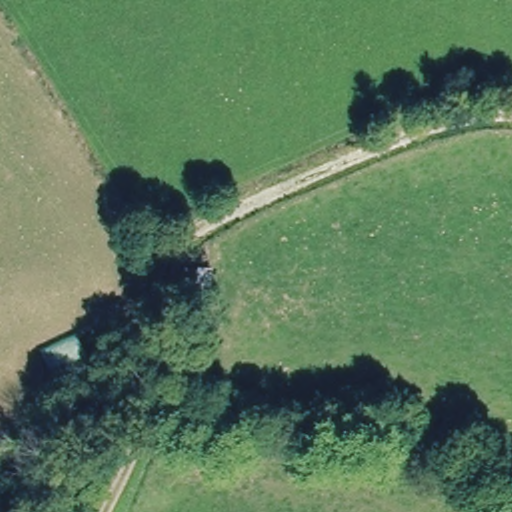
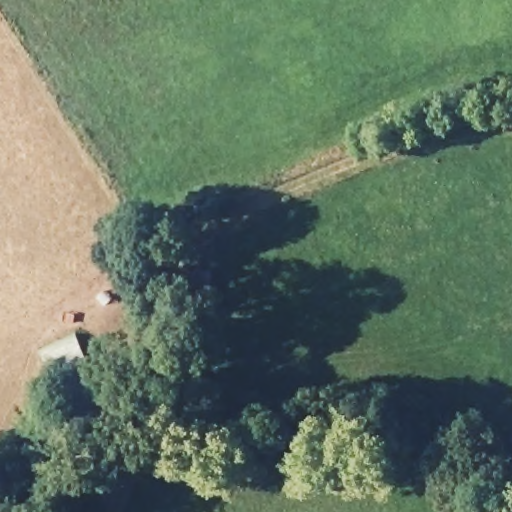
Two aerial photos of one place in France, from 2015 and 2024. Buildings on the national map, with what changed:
unchanged [(210,317),(182,312),(186,262),(211,263),(210,317)]

